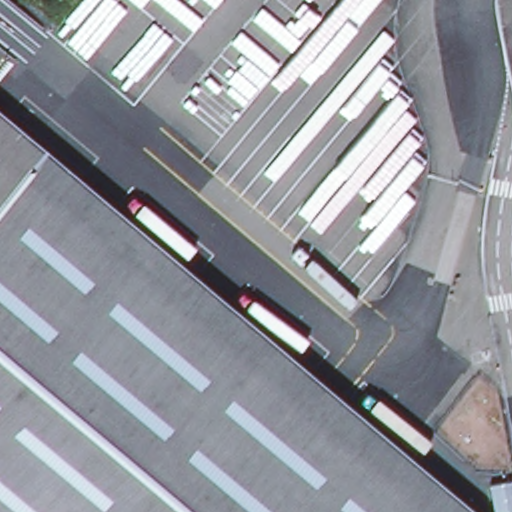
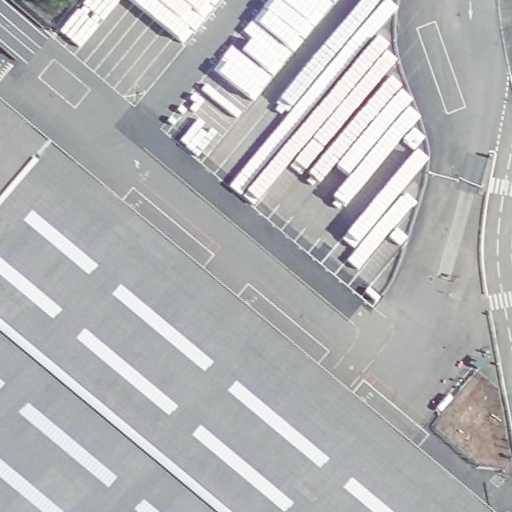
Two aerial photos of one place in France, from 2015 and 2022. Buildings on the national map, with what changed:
unchanged [(481,512),(0,512),(0,110),(481,512)]

